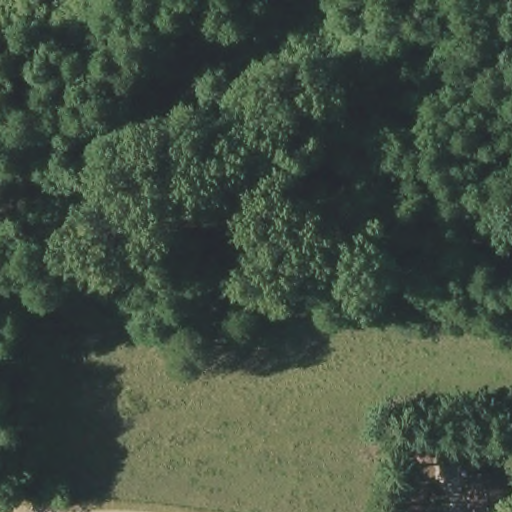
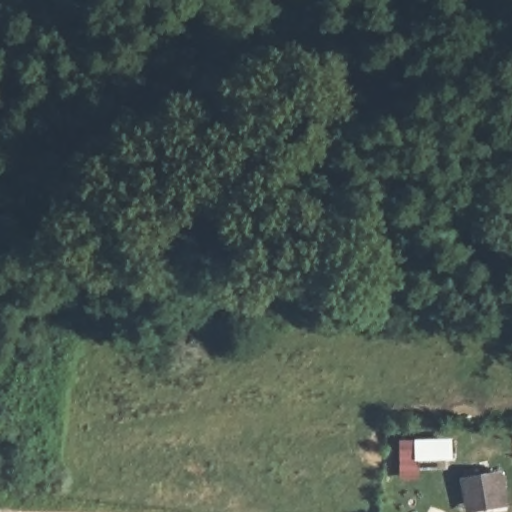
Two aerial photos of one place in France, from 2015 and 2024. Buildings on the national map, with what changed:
unchanged [(420,480),(400,480),(401,440),(417,440),(454,440),(455,460),(451,460),(452,470),(420,470),(420,480)]
new [(509,506),(476,512),(467,512),(461,480),(504,472),(509,506)]

